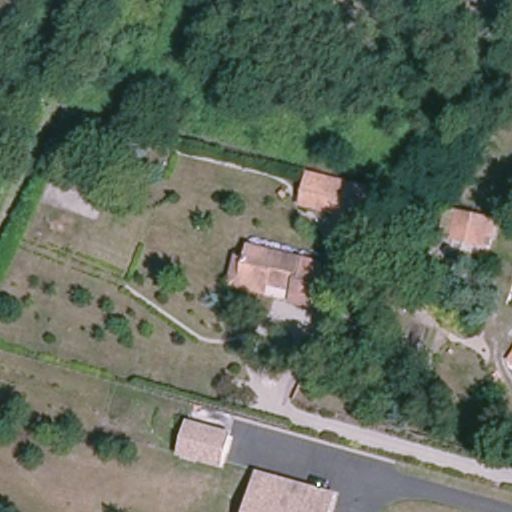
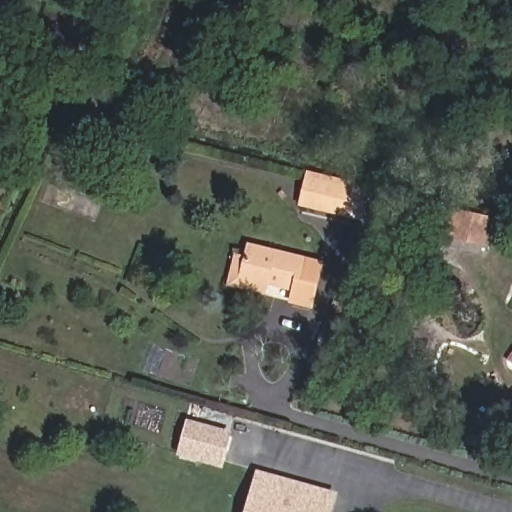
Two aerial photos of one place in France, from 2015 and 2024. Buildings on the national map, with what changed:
unchanged [(300,201),(308,174),(355,185),(347,214),(300,201)]
unchanged [(488,224),(496,226),(487,253),(460,244),(468,218),(488,224)]
unchanged [(237,292),(243,264),(254,265),(257,251),(325,270),(316,307),(251,286),(247,296),(237,292)]
unchanged [(232,436),(222,464),(184,454),(192,424),(232,436)]
unchanged [(307,485),(341,494),(336,512),(253,512),(264,473),(307,485)]

